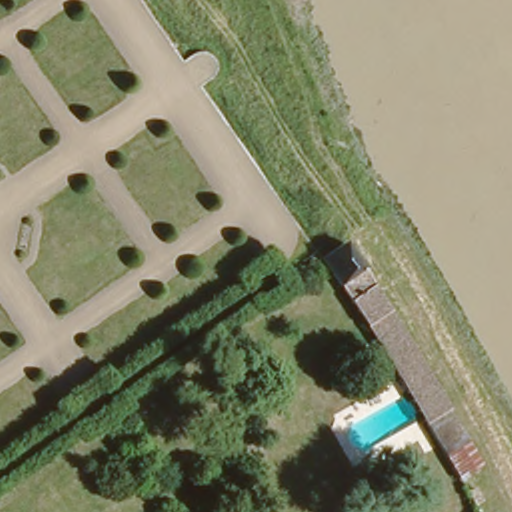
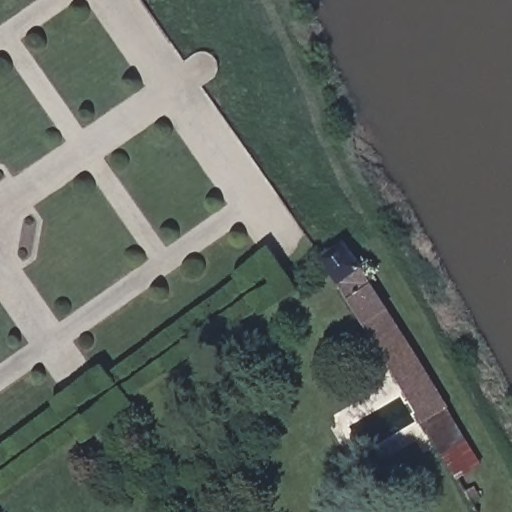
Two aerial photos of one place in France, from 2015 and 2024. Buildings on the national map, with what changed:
unchanged [(347,246),(376,288),(371,295),(439,403),(417,417),(318,261),(347,246)]
unchanged [(417,417),(439,403),(474,457),(451,471),(417,417)]

